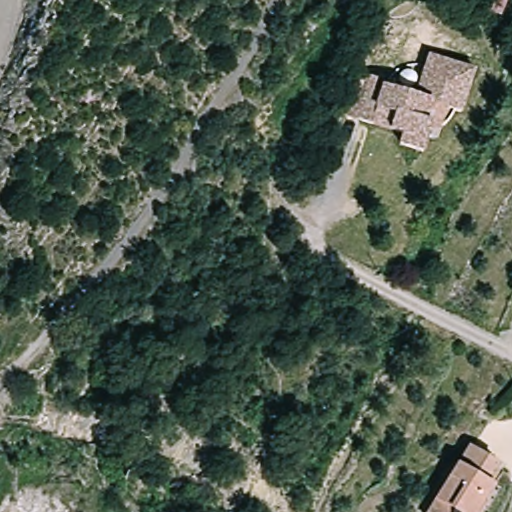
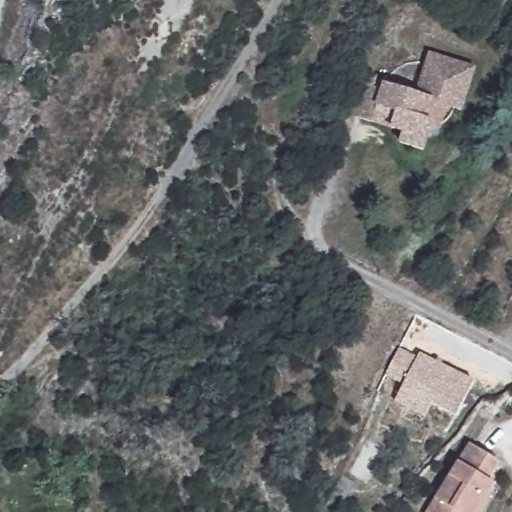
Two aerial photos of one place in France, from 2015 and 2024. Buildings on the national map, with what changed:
unchanged [(351,116),(365,77),(383,82),(382,87),(422,100),(436,59),(478,74),(477,78),(465,114),(447,109),(436,105),(430,124),(437,127),(428,156),(406,148),(409,137),(396,132),(377,126),(351,116)]
new [(418,357),(420,353),(475,382),(456,417),(433,404),(425,420),(395,402),(403,386),(386,375),(399,348),(418,357)]
unchanged [(475,444),(502,462),(492,478),(499,483),(481,512),(430,512),(475,444)]

